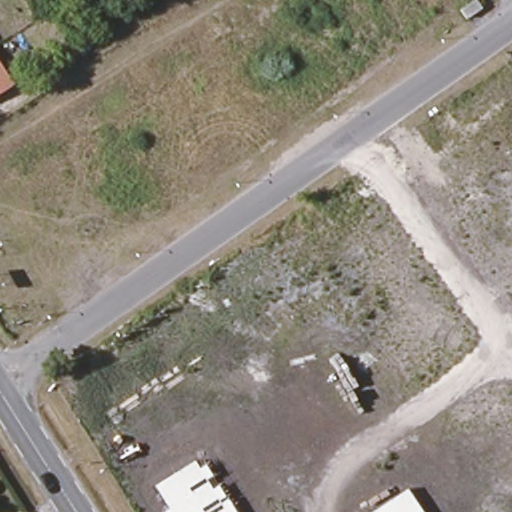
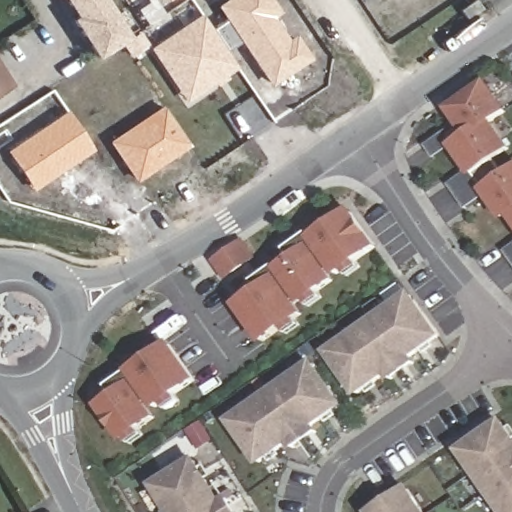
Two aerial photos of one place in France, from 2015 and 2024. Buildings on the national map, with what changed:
unchanged [(93,53),(61,0),(98,0),(120,36),(93,53)]
new [(216,6),(226,0),(272,0),(281,14),(273,16),(290,40),(295,35),(313,59),(271,86),(240,42),(225,52),(210,31),(225,20),(216,6)]
new [(199,14),(210,31),(225,52),(235,68),(225,75),(227,79),(216,85),(215,82),(185,102),(147,48),(199,14)]
unchanged [(0,92),(0,68),(11,84),(0,92)]
new [(496,122),(512,147),(512,149),(497,159),(507,174),(512,171),(512,219),(510,217),(503,220),(497,211),(494,213),(483,197),(466,210),(450,185),(466,174),(455,158),(457,156),(452,148),(436,159),(427,146),(459,125),(448,108),(488,80),(510,111),(496,122)]
new [(161,104),(191,146),(137,181),(109,140),(161,104)]
new [(7,151),(67,111),(94,151),(34,191),(7,151)]
new [(255,281),(277,264),(278,267),(292,257),(287,249),(310,234),(311,236),(352,208),(380,247),(359,262),(361,266),(348,276),(345,271),(335,277),(337,280),(320,292),(322,297),(310,307),(307,303),(301,307),(306,315),(299,320),(301,325),(287,334),(283,329),(263,345),(236,305),(259,289),(255,281)]
new [(226,281),(213,261),(245,238),(258,257),(226,281)]
new [(505,251),(512,247),(512,261),(505,251)]
new [(418,362),(390,382),(386,377),(357,397),(325,351),(411,291),(445,337),(415,357),(418,362)]
new [(167,410),(164,406),(155,412),(159,417),(141,430),(144,434),(130,444),(128,439),(124,443),(98,405),(116,395),(110,386),(130,373),(129,371),(171,341),(199,381),(178,395),(181,401),(167,410)]
new [(291,451),(288,446),(259,466),(227,419),(314,360),(346,406),(316,425),(320,431),(291,451)]
new [(458,451),(504,418),(512,431),(512,512),(500,512),(458,451)]
new [(229,495),(240,512),(167,512),(150,486),(197,456),(223,498),(229,495)]
new [(368,511),(410,486),(427,512),(369,512),(368,511)]

